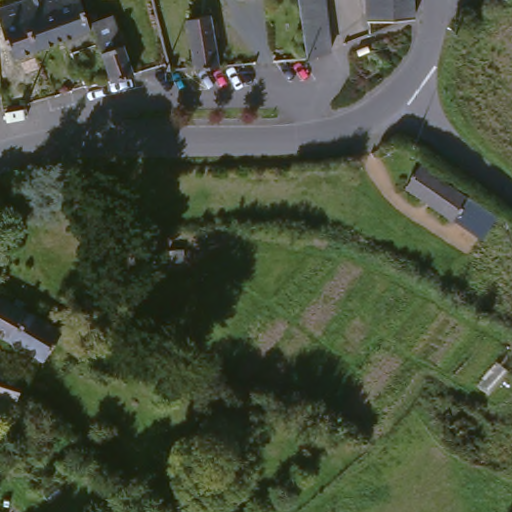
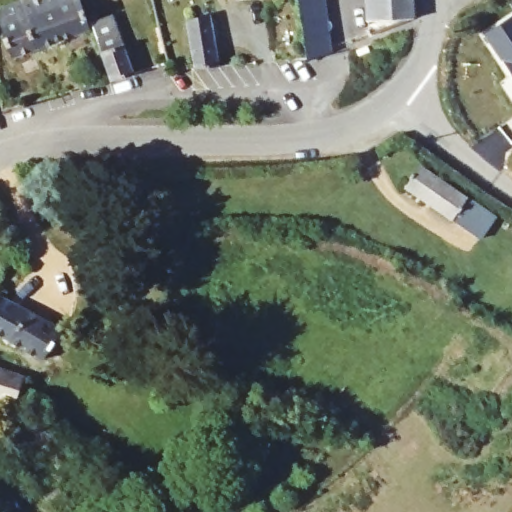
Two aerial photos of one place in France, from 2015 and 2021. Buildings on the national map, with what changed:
unchanged [(2,5),(16,0),(25,0),(29,13),(31,13),(42,44),(19,52),(2,5)]
unchanged [(29,13),(25,0),(88,0),(95,24),(42,44),(31,13),(29,13)]
unchanged [(305,0),(330,0),(336,46),(312,53),(305,0)]
unchanged [(368,21),(367,0),(413,0),(414,18),(368,21)]
unchanged [(118,76),(113,62),(97,18),(118,10),(139,69),(118,76)]
unchanged [(201,66),(192,14),(215,10),(217,18),(221,17),(223,32),(219,32),(224,62),(201,66)]
new [(485,32),(512,14),(512,70),(485,32)]
unchanged [(501,212),(487,233),(458,214),(457,215),(411,182),(426,160),(501,212)]
unchanged [(0,288),(0,281),(3,283),(0,288)]
unchanged [(0,330),(0,294),(18,303),(27,308),(29,302),(39,307),(36,313),(68,330),(48,360),(23,344),(20,349),(13,345),(16,340),(0,330)]
unchanged [(0,399),(0,392),(0,390),(0,358),(29,368),(35,370),(27,395),(26,399),(24,398),(20,409),(3,400),(0,399)]

